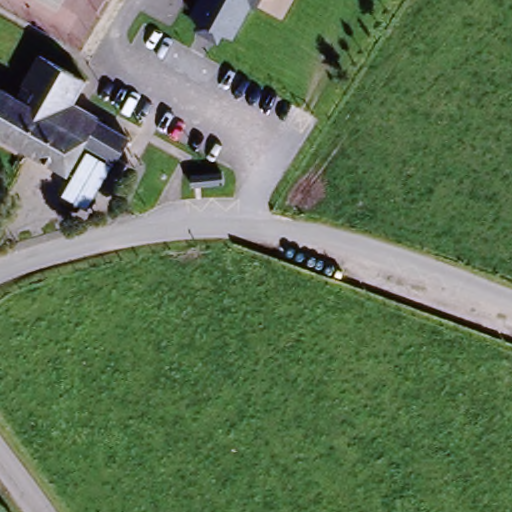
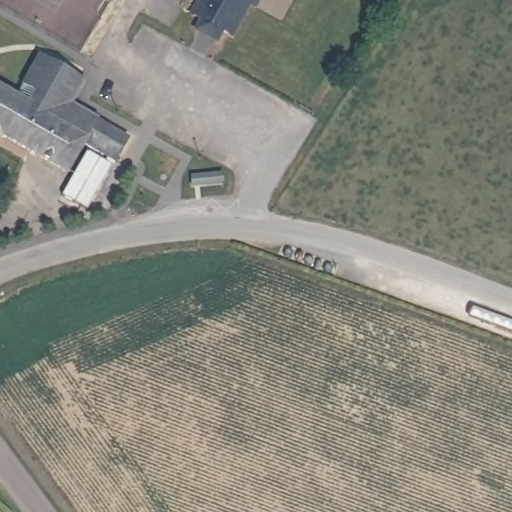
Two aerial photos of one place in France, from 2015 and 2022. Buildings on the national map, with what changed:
unchanged [(189,14),(197,0),(263,0),(257,11),(250,9),(234,38),(223,32),(217,43),(193,31),(199,20),(189,14)]
unchanged [(0,138),(0,86),(8,91),(15,80),(23,84),(30,71),(40,56),(85,81),(72,104),(98,119),(97,121),(128,139),(115,163),(84,145),(65,176),(0,138)]

